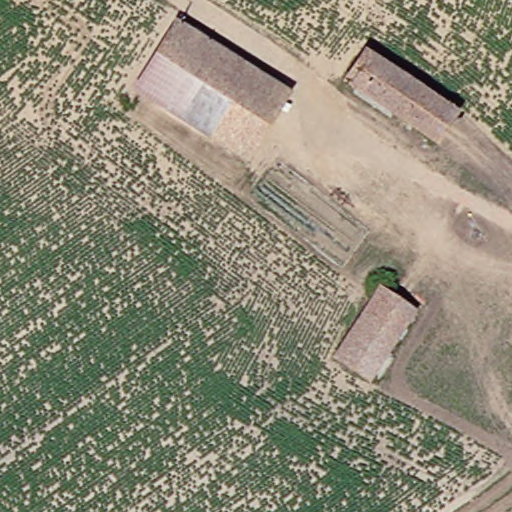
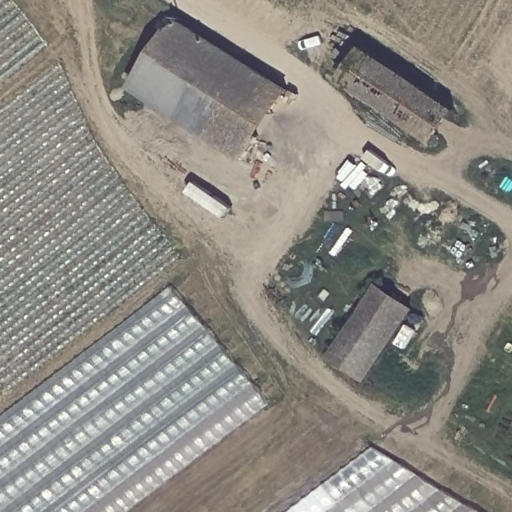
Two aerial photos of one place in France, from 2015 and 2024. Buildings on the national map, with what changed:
unchanged [(179,19),(271,75),(228,144),(134,85),(179,19)]
unchanged [(437,140),(344,79),(368,47),(459,107),(437,140)]
unchanged [(271,75),(293,89),(248,156),(228,144),(271,75)]
new [(0,418),(174,284),(273,403),(130,512),(0,512),(0,418)]
unchanged [(417,307),(369,374),(337,350),(383,286),(417,307)]
new [(374,446),(485,512),(287,512),(374,446)]

